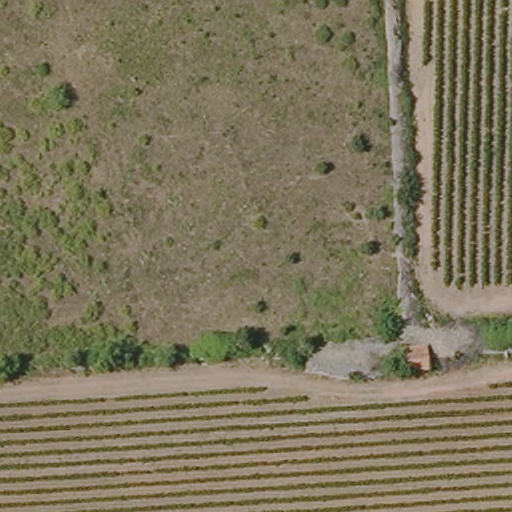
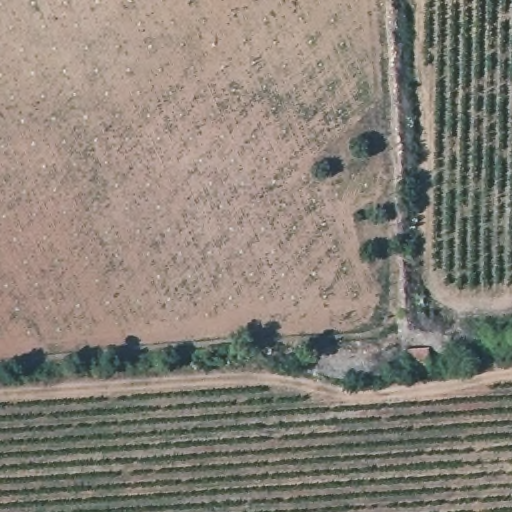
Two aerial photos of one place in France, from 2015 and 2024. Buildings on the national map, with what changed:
unchanged [(430,372),(412,373),(410,353),(429,352),(430,372)]

